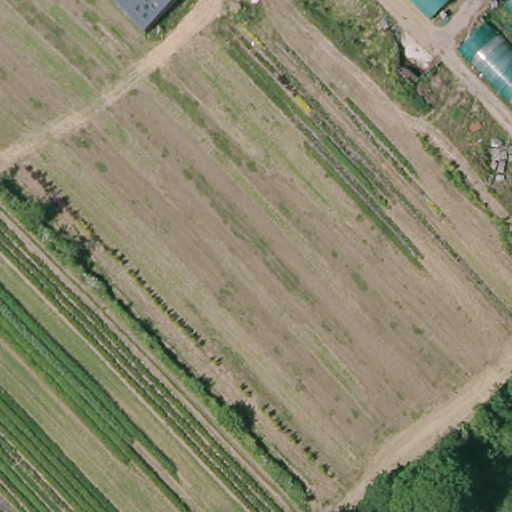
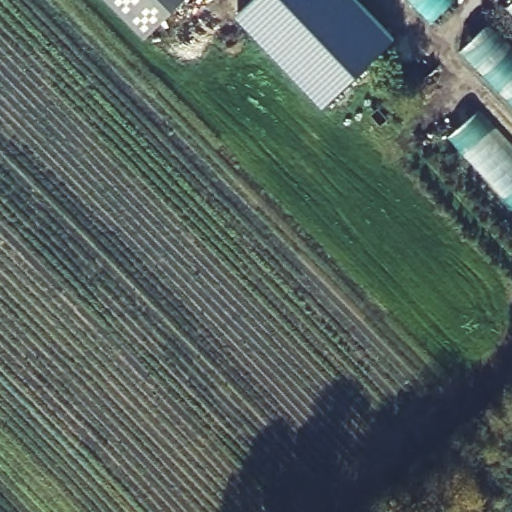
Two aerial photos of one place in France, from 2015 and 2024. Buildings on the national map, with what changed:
unchanged [(144,37),(108,0),(182,0),(144,37)]
new [(396,30),(330,100),(237,14),(251,0),(364,0),(396,30)]
unchanged [(432,21),(410,0),(452,0),(432,21)]
unchanged [(505,9),(512,2),(512,15),(505,9)]
unchanged [(512,46),(512,104),(460,52),(489,22),(512,46)]
new [(512,147),(512,212),(450,150),(487,121),(512,147)]

